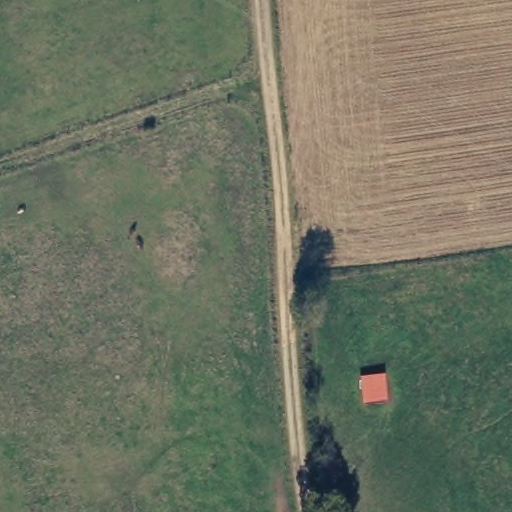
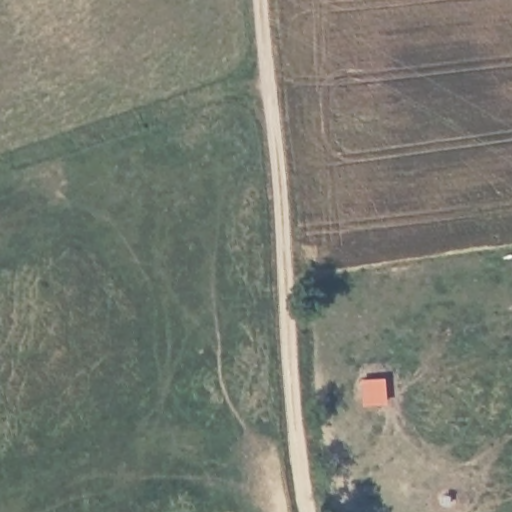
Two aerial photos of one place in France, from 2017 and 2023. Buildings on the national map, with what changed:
unchanged [(391,384),(364,385),(364,363),(389,362),(391,384)]

